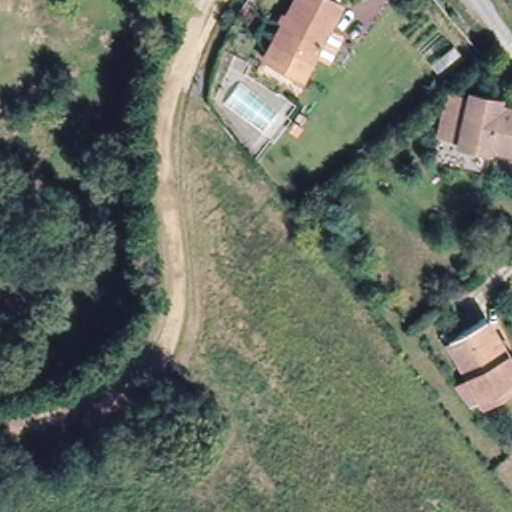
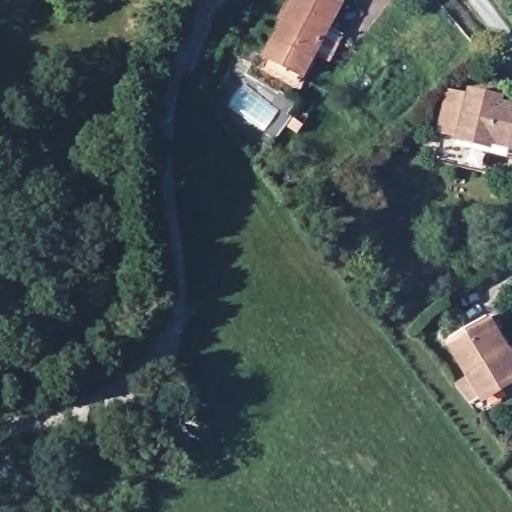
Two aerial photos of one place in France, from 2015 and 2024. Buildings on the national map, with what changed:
unchanged [(329,47),(316,39),(302,64),(264,44),(288,0),(337,0),(323,24),(337,32),(329,47)]
unchanged [(445,97),(465,102),(466,96),(497,104),(496,110),(512,113),(512,133),(507,153),(436,135),(445,97)]
unchanged [(486,410),(480,397),(467,405),(453,386),(469,377),(451,342),(488,321),(512,368),(512,395),(486,410)]

